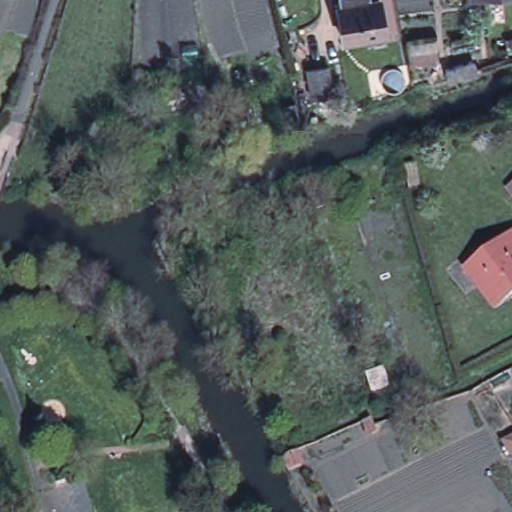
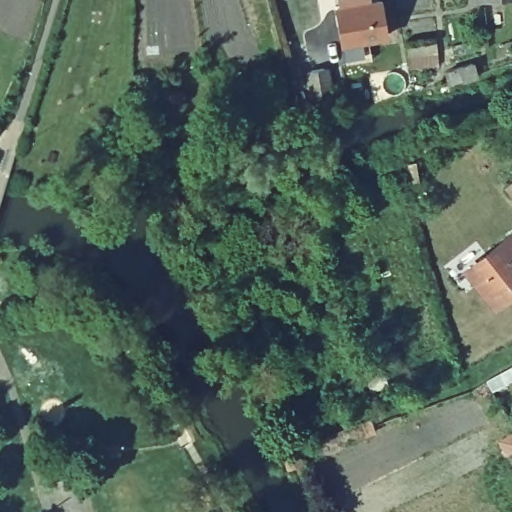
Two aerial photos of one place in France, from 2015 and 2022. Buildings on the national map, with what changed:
unchanged [(349,42),(343,7),(347,7),(345,0),(374,0),(375,2),(385,1),(390,35),(349,42)]
unchanged [(440,41),(441,65),(422,67),(423,80),(412,81),(407,44),(440,41)]
unchanged [(446,77),(459,72),(473,68),(477,79),(462,84),(450,89),(446,77)]
unchanged [(314,106),(308,77),(329,74),(334,102),(314,106)]
unchanged [(182,104),(172,105),(172,96),(182,95),(182,104)]
unchanged [(38,162),(33,179),(21,176),(26,159),(38,162)]
unchanged [(508,192),(512,188),(512,196),(508,192)]
unchanged [(484,300),(460,267),(511,229),(512,231),(512,279),(484,300)]
unchanged [(376,434),(367,437),(362,425),(371,421),(374,428),(376,434)]
unchanged [(512,459),(503,442),(512,437),(512,459)]
unchanged [(297,452),(303,466),(293,471),(287,457),(297,452)]

